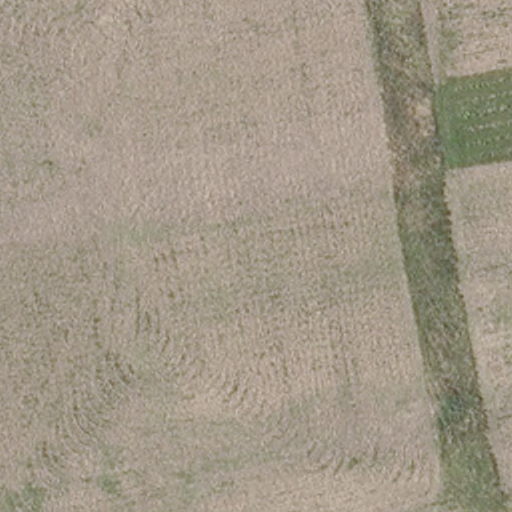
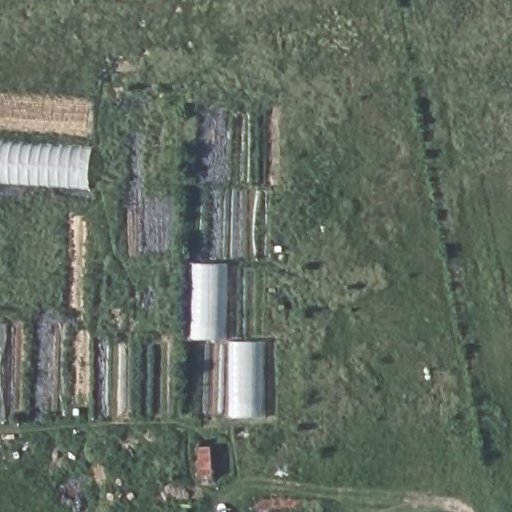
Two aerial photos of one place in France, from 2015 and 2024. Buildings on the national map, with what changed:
new [(0,143),(94,149),(92,191),(0,184),(0,143)]
new [(194,339),(195,263),(229,263),(228,340),(194,339)]
new [(0,323),(9,323),(7,423),(0,422),(0,323)]
new [(233,342),(266,342),(267,416),(233,417),(233,342)]

